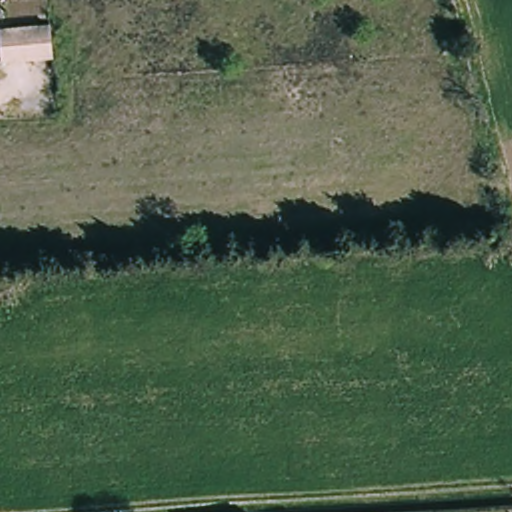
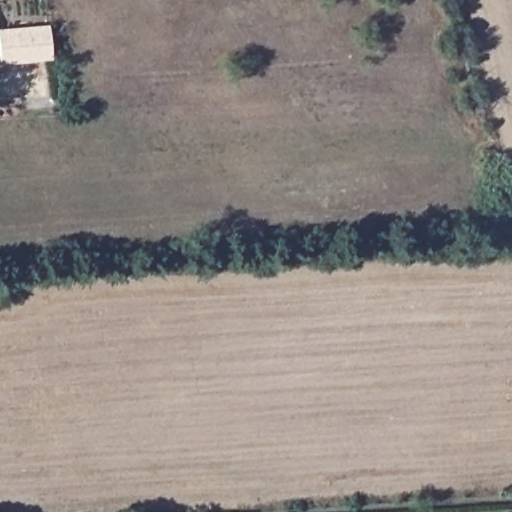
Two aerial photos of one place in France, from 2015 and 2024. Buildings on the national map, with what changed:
unchanged [(46,62),(0,66),(0,31),(43,28),(46,62)]

